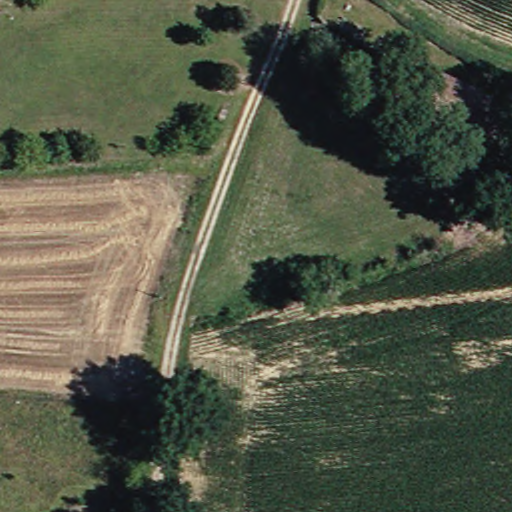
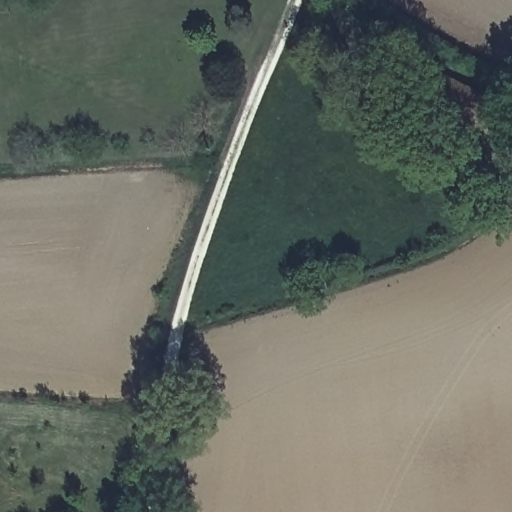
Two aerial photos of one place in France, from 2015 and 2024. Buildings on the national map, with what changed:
unchanged [(496,146),(424,102),(441,72),(487,99),(486,104),(510,119),(496,146)]

